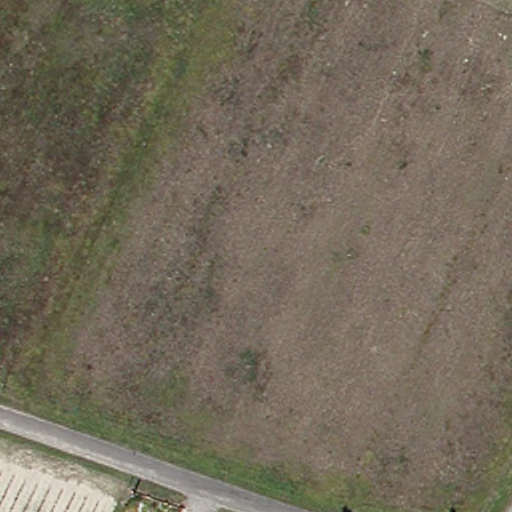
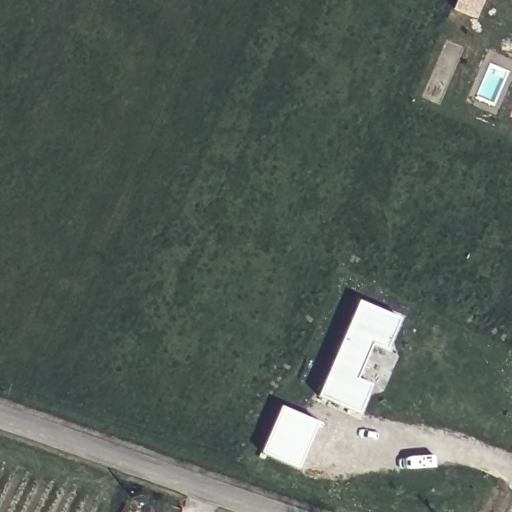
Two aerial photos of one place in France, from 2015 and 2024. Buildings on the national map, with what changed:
new [(362,302),(402,319),(388,350),(375,344),(359,378),(373,385),(361,413),(321,395),(362,302)]
new [(281,408),(314,422),(295,465),(263,451),(281,408)]

